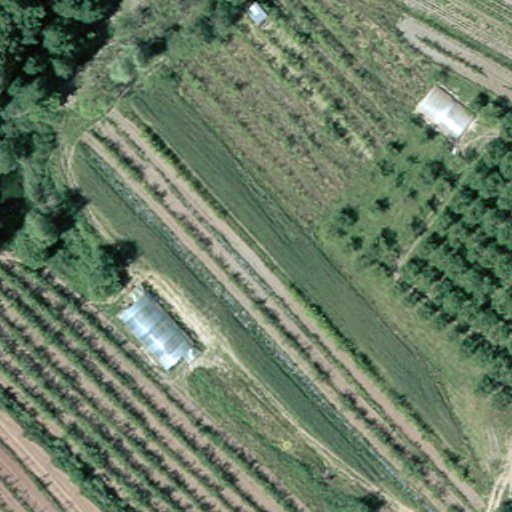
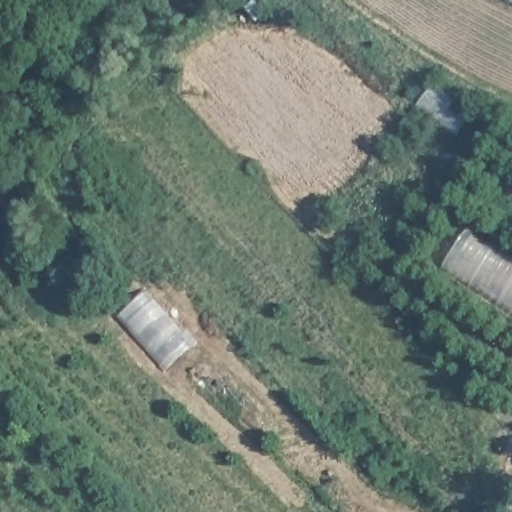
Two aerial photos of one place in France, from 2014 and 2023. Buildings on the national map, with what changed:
new [(510,0),(512,0),(512,1),(510,0)]
new [(441,267),(467,226),(512,256),(512,313),(441,267)]

